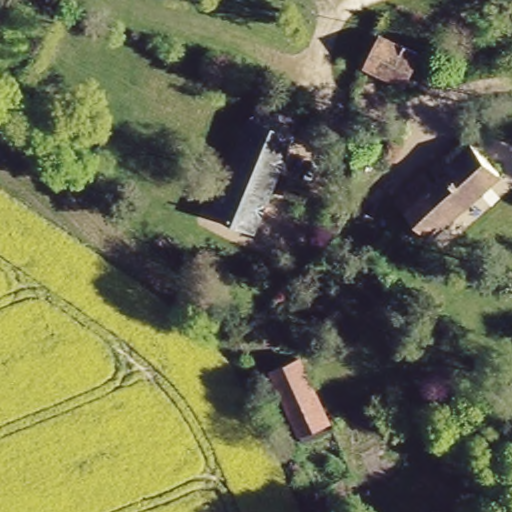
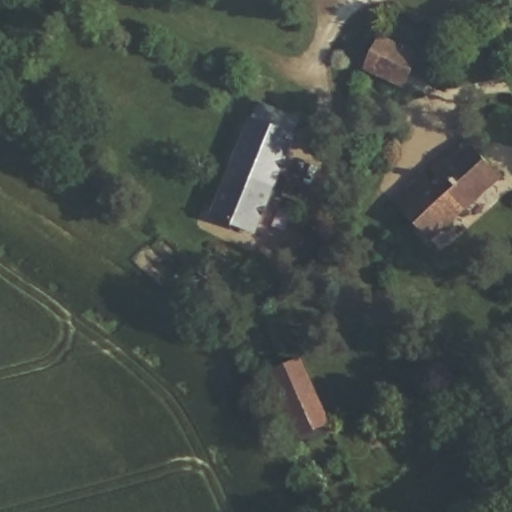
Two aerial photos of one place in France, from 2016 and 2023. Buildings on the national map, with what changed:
unchanged [(374,51),(413,66),(400,101),(363,86),(374,51)]
unchanged [(224,168),(254,102),(297,121),(267,187),(224,168)]
unchanged [(404,197),(431,174),(460,149),(489,184),(424,238),(396,204),(404,197)]
unchanged [(224,168),(267,187),(244,238),(202,219),(224,168)]
unchanged [(251,378),(299,355),(332,426),(283,450),(251,378)]

